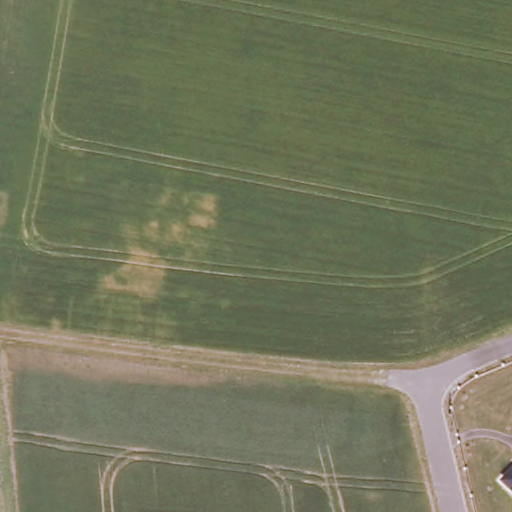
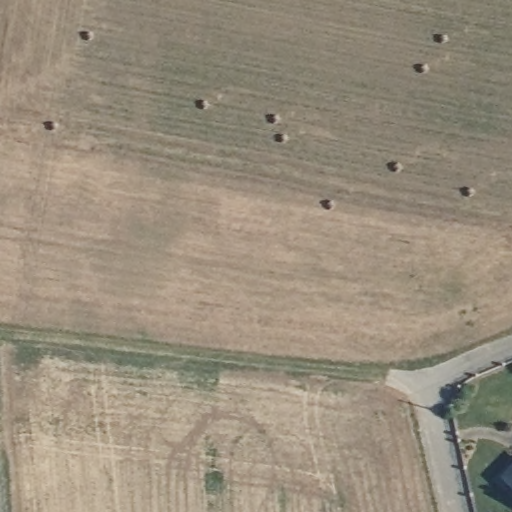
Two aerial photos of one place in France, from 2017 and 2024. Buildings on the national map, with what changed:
unchanged [(512,470),(512,490),(502,481),(512,470)]

